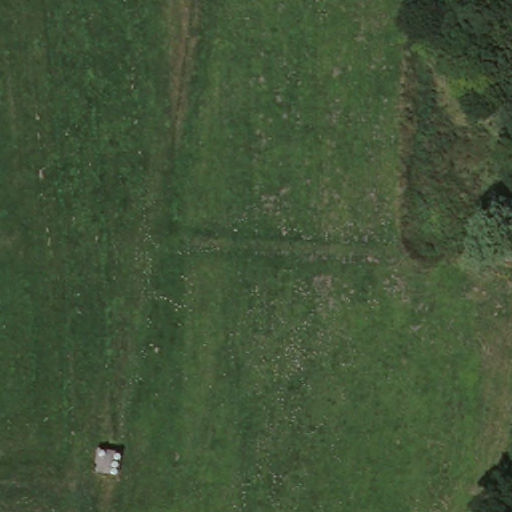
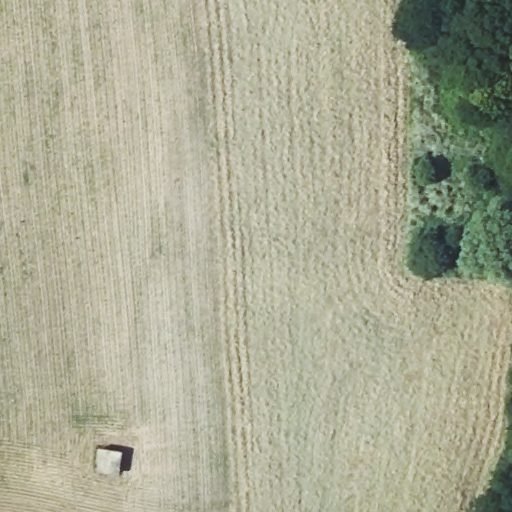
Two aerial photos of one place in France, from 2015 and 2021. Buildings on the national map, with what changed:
unchanged [(106,455),(116,455),(114,478),(96,477),(95,454),(106,455)]

